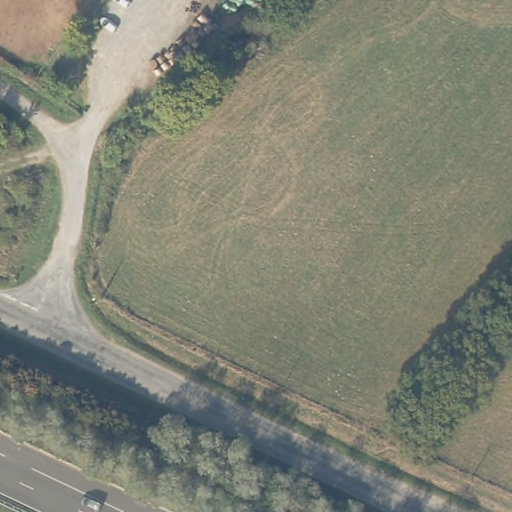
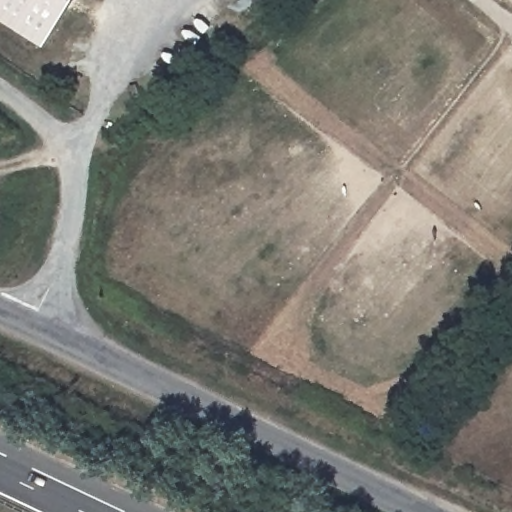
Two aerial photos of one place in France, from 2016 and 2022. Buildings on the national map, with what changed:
new [(0,19),(0,0),(72,0),(42,46),(0,19)]

